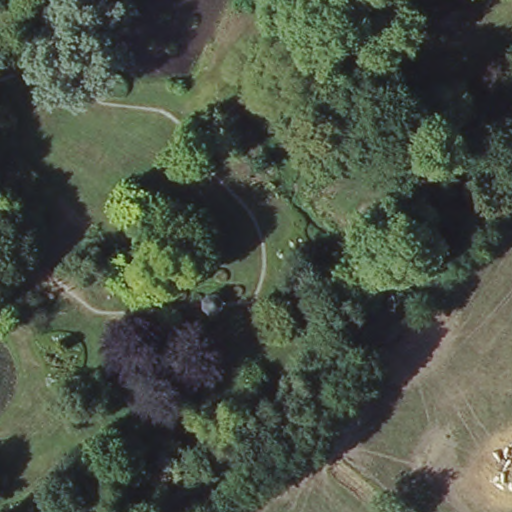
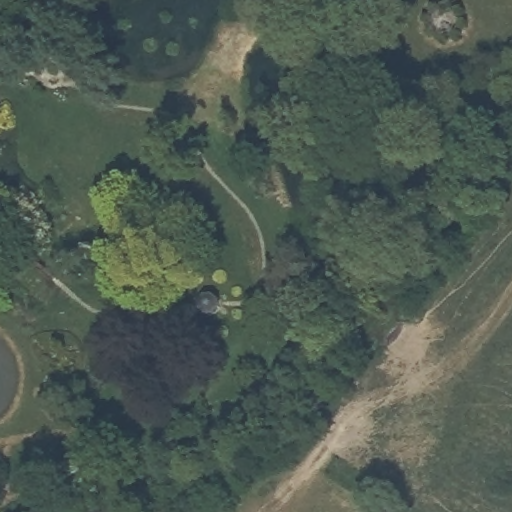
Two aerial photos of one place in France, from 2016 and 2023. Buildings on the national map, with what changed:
unchanged [(440,84),(438,78),(440,69),(448,65),(455,69),(457,80),(451,86),(440,84)]

